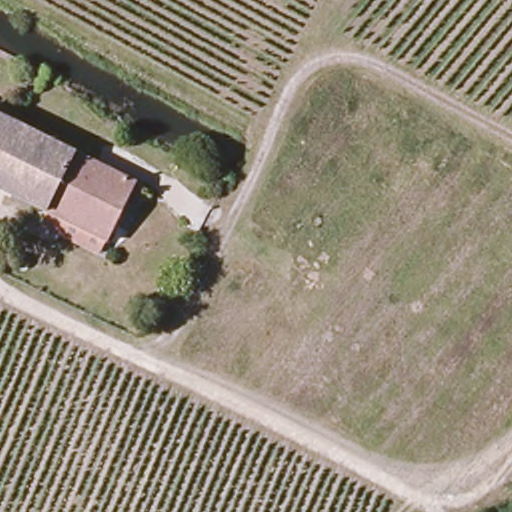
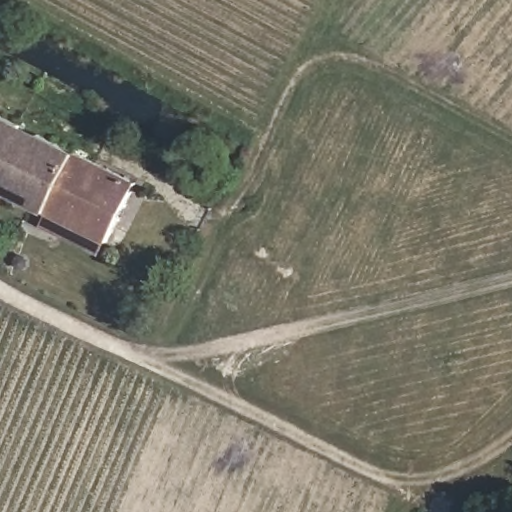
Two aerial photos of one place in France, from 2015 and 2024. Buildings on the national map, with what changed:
unchanged [(0,190),(0,116),(16,124),(35,133),(5,192),(0,190)]
unchanged [(140,187),(109,244),(5,192),(35,133),(140,187)]

